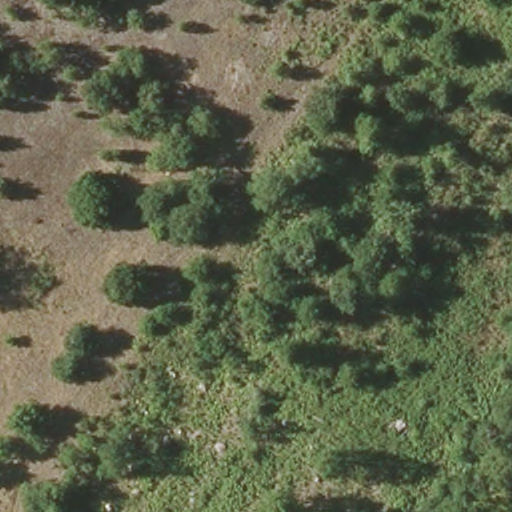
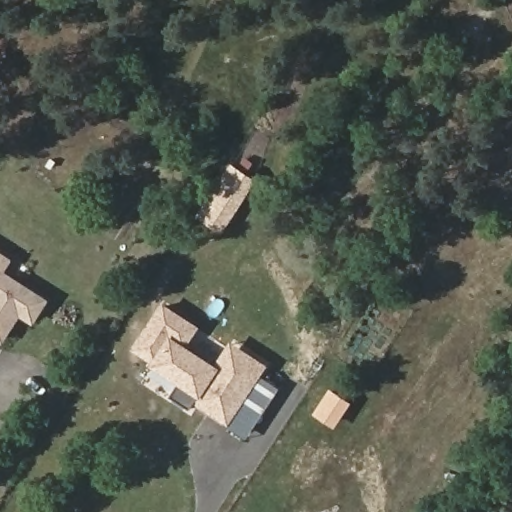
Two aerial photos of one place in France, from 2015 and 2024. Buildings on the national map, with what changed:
new [(231,162),(255,178),(220,231),(196,216),(231,162)]
new [(10,259),(2,271),(46,300),(34,319),(20,310),(1,338),(0,337),(0,253),(10,259)]
new [(197,326),(184,346),(216,367),(227,352),(232,343),(241,349),(265,366),(228,421),(196,400),(190,409),(170,396),(180,380),(154,363),(156,361),(136,348),(165,305),(197,326)]
new [(512,512),(508,512),(512,505),(512,512)]

